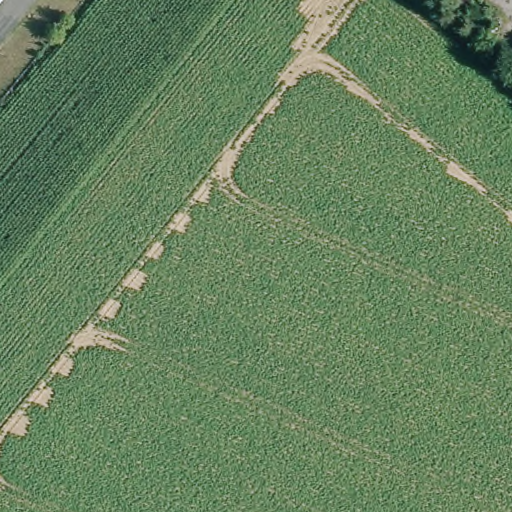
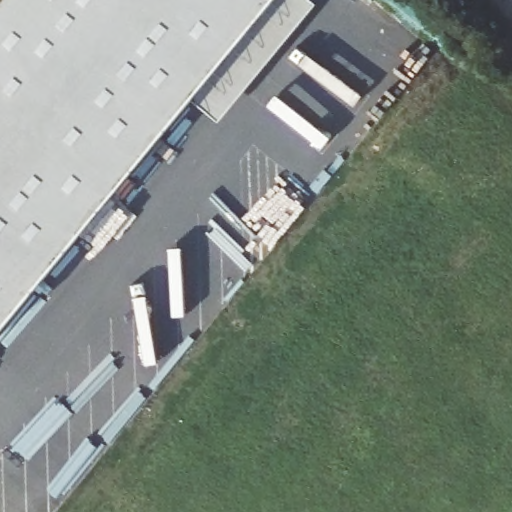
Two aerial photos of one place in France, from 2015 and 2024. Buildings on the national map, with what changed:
demolished [(0,0),(3,0),(0,3),(0,0)]
new [(217,127),(191,105),(0,334),(0,0),(306,0),(315,8),(217,127)]

